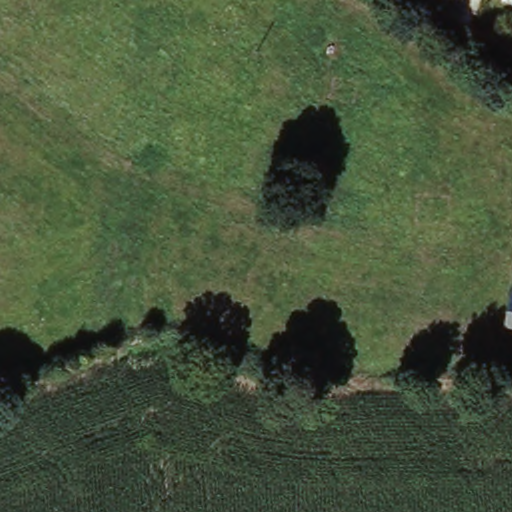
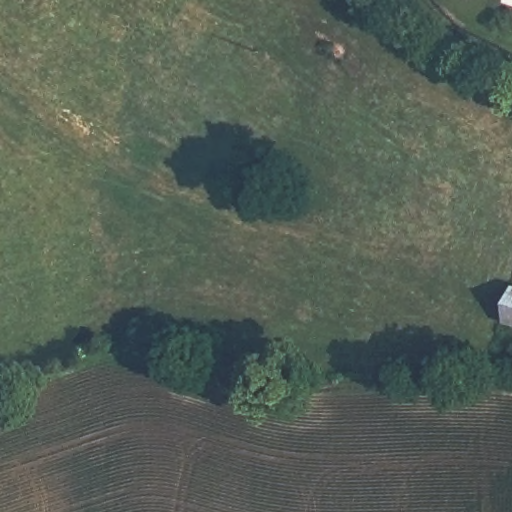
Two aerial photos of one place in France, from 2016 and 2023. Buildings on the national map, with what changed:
unchanged [(511,330),(512,326),(512,330),(511,330)]

